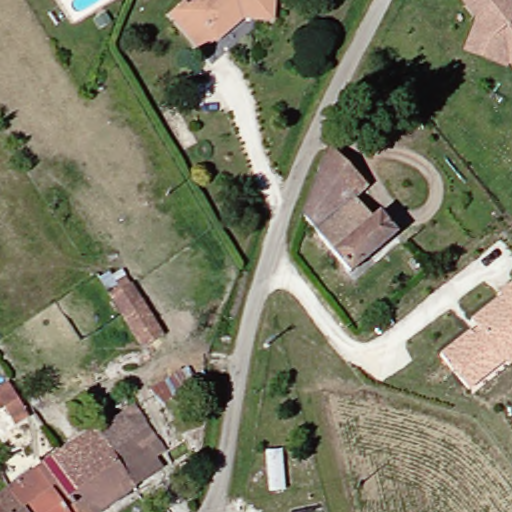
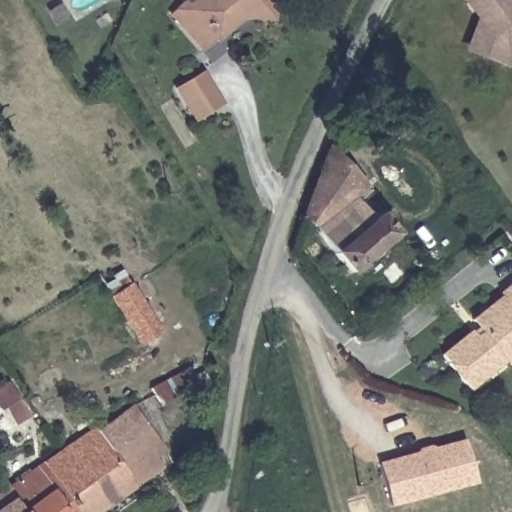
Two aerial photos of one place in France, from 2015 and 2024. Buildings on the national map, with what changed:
unchanged [(282,16),(249,15),(207,49),(176,11),(189,0),(192,0),(197,6),(203,0),(282,0),(282,16)]
unchanged [(499,59),(464,49),(470,27),(476,24),(461,1),(462,0),(500,0),(500,1),(505,0),(512,0),(512,47),(502,49),(499,59)]
new [(205,71),(224,103),(195,121),(173,88),(205,71)]
unchanged [(389,212),(406,235),(355,275),(311,215),(332,155),(340,140),(376,187),(365,195),(382,217),(389,212)]
unchanged [(484,168),(476,176),(468,166),(477,157),(484,168)]
unchanged [(145,337),(114,291),(135,278),(164,325),(145,337)]
unchanged [(472,317),(500,296),(498,290),(512,278),(512,362),(472,392),(438,351),(476,322),(472,317)]
unchanged [(19,415),(12,401),(17,398),(13,390),(27,382),(38,404),(19,415)]
unchanged [(143,486),(108,512),(86,512),(52,463),(72,450),(103,427),(107,431),(139,408),(169,452),(177,467),(146,490),(143,486)]
new [(392,508),(380,462),(465,439),(477,485),(392,508)]
unchanged [(86,512),(34,512),(18,487),(52,463),(86,512)]
unchanged [(0,512),(0,502),(18,487),(34,512),(0,512)]

